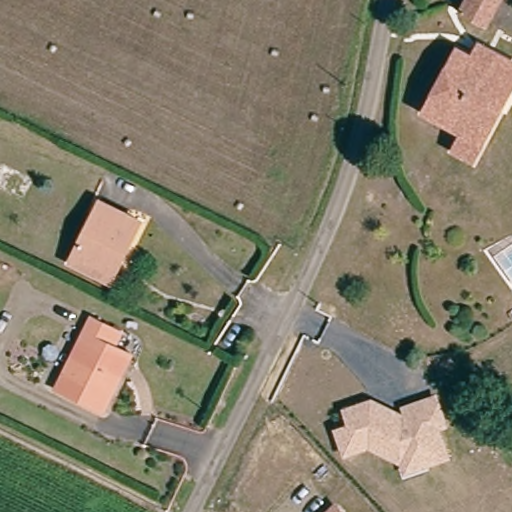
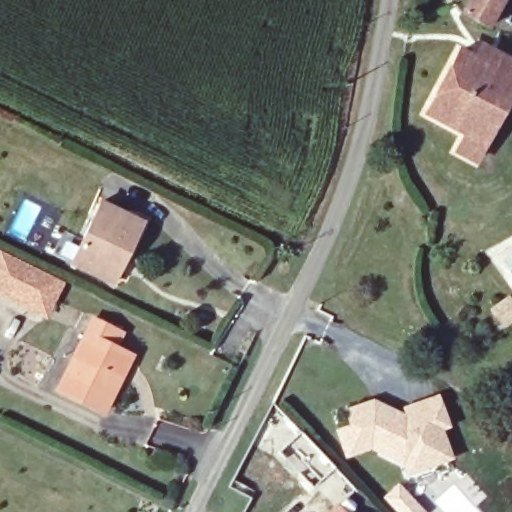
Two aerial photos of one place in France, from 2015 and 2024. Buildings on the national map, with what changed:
unchanged [(481,28),(457,11),(466,0),(502,0),(481,28)]
unchanged [(461,133),(416,109),(453,48),(470,57),(477,45),(492,54),(512,67),(512,96),(490,135),(483,145),(470,168),(448,155),(461,133)]
unchanged [(103,282),(69,265),(97,203),(144,226),(132,251),(114,287),(103,282)]
new [(47,316),(0,295),(0,251),(62,282),(47,316)]
unchanged [(55,388),(91,313),(120,329),(112,345),(128,353),(102,410),(55,388)]
unchanged [(367,443),(342,452),(334,428),(347,423),(342,408),(369,399),(377,403),(378,410),(394,417),(405,414),(402,407),(434,397),(444,425),(437,427),(447,456),(425,463),(404,469),(400,459),(367,443)]
unchanged [(345,512),(330,512),(338,504),(345,512)]

